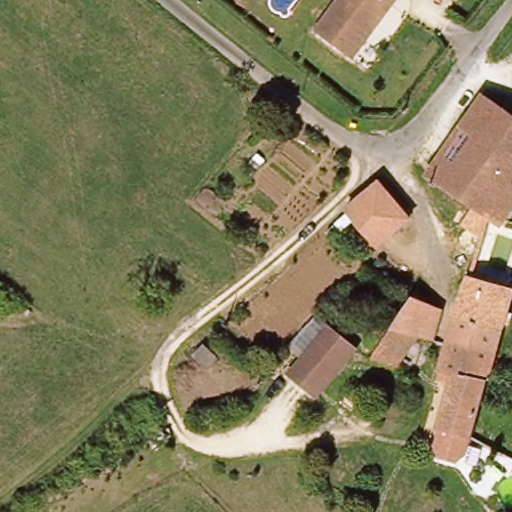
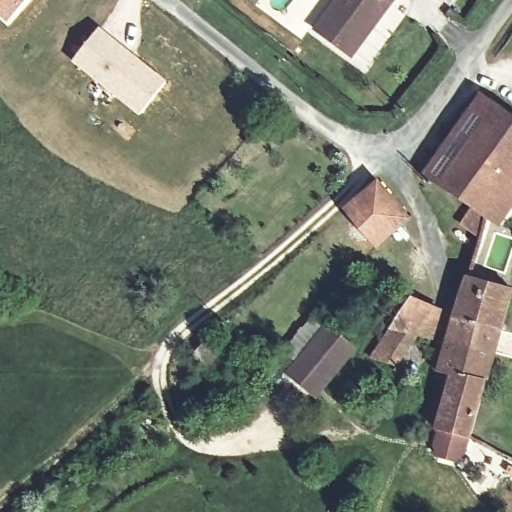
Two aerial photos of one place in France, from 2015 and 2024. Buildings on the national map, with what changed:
new [(0,12),(0,0),(27,0),(10,20),(0,12)]
unchanged [(352,0),(408,0),(368,51),(334,25),(352,0)]
new [(99,29),(167,83),(141,115),(72,61),(99,29)]
unchanged [(477,95),(512,117),(512,201),(498,221),(486,215),(485,220),(441,192),(422,178),(477,95)]
unchanged [(395,183),(427,217),(397,246),(364,209),(395,183)]
unchanged [(501,327),(457,316),(463,293),(485,220),(486,215),(498,221),(512,231),(512,285),(510,295),(501,327)]
unchanged [(394,329),(412,300),(442,311),(431,340),(416,335),(397,371),(375,362),(394,329)]
unchanged [(448,343),(457,316),(501,327),(495,353),(448,343)]
unchanged [(288,376),(300,361),(307,351),(327,325),(355,346),(335,372),(327,382),(316,397),(288,376)]
unchanged [(470,451),(466,450),(455,448),(456,443),(456,441),(455,441),(436,438),(438,426),(452,378),(440,373),(448,343),(495,353),(473,432),(472,435),(470,451)]
unchanged [(225,349),(236,360),(229,367),(217,356),(225,349)]

